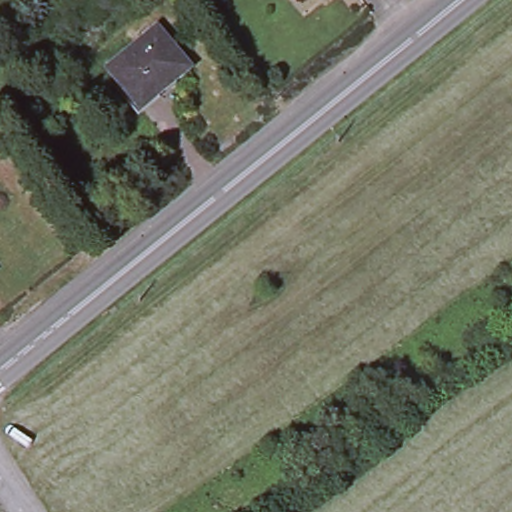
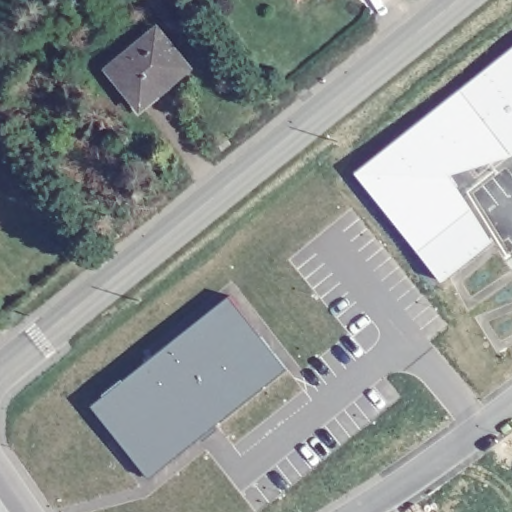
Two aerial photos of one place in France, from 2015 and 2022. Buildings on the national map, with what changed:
unchanged [(157,95),(152,90),(135,104),(106,69),(156,27),(190,68),(157,95)]
new [(512,48),(512,156),(510,158),(448,175),(492,242),(441,280),(356,174),(512,48)]
new [(285,369),(148,478),(91,408),(228,298),(285,369)]

